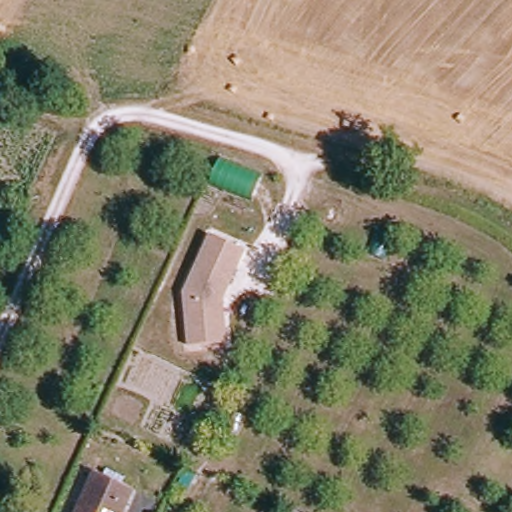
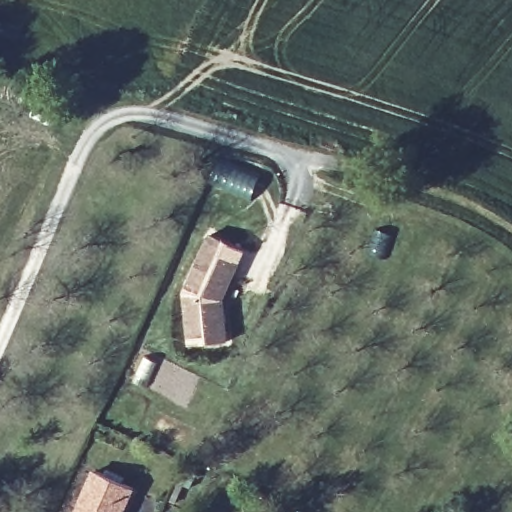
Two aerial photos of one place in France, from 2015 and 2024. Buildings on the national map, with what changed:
unchanged [(247,250),(228,297),(232,342),(194,346),(189,293),(215,235),(247,250)]
unchanged [(94,475),(130,492),(122,512),(78,512),(94,475)]

